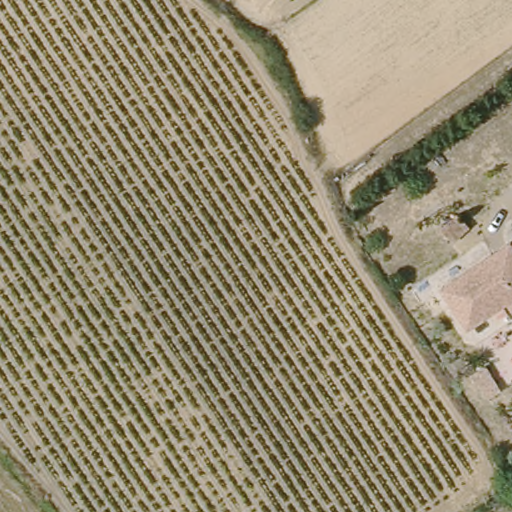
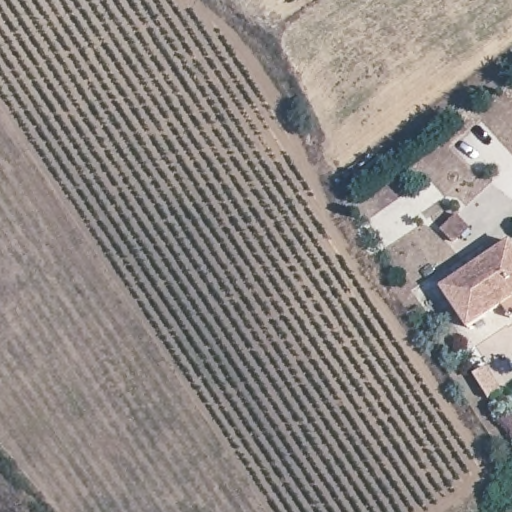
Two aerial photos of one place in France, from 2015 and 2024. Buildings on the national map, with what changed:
unchanged [(468,328),(443,288),(511,242),(512,244),(512,316),(511,317),(503,305),(468,328)]

